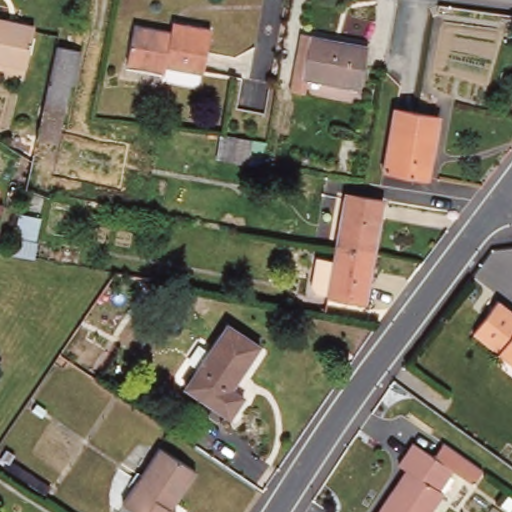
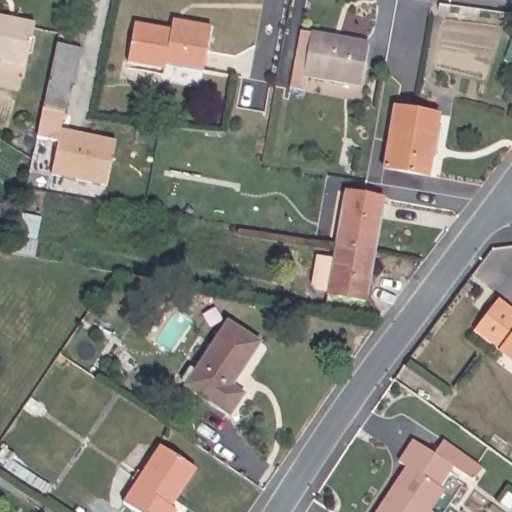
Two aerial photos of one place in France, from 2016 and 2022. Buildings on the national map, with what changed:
unchanged [(35,25),(26,66),(0,60),(0,18),(35,25)]
unchanged [(202,71),(165,65),(165,71),(127,63),(134,24),(171,31),(173,21),(186,22),(210,27),(202,71)]
unchanged [(364,44),(356,82),(303,73),(300,92),(285,90),(295,32),(364,44)]
unchanged [(41,127),(44,117),(61,34),(82,39),(65,121),(62,132),(41,127)]
unchanged [(440,115),(428,177),(383,169),(395,107),(440,115)]
new [(62,132),(63,129),(116,140),(106,186),(51,175),(57,141),(40,138),(41,127),(62,132)]
unchanged [(336,245),(345,192),(383,199),(374,252),(336,245)]
unchanged [(20,212),(42,218),(37,247),(41,249),(40,258),(11,253),(20,212)]
unchanged [(365,302),(317,294),(311,286),(316,257),(333,259),(336,245),(374,252),(365,302)]
unchanged [(471,332),(497,301),(512,312),(512,334),(498,352),(471,332)]
unchanged [(260,344),(231,387),(244,396),(230,417),(185,387),(227,322),(260,344)]
unchanged [(512,334),(512,362),(498,352),(512,334)]
unchanged [(453,469),(440,489),(444,492),(431,512),(378,512),(406,469),(398,463),(413,442),(437,458),(447,443),(488,472),(478,486),(453,469)]
unchanged [(169,510),(173,512),(137,512),(123,503),(160,446),(196,468),(169,510)]

